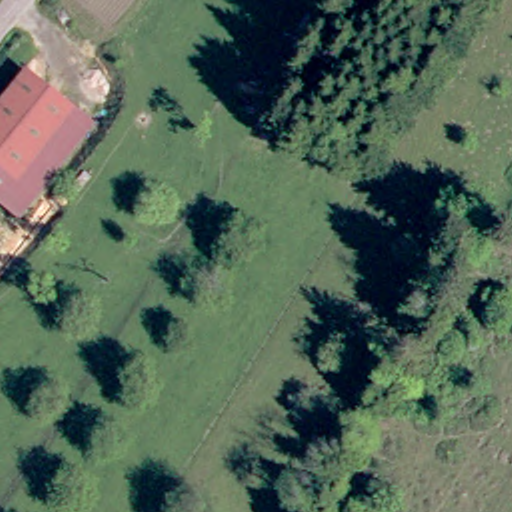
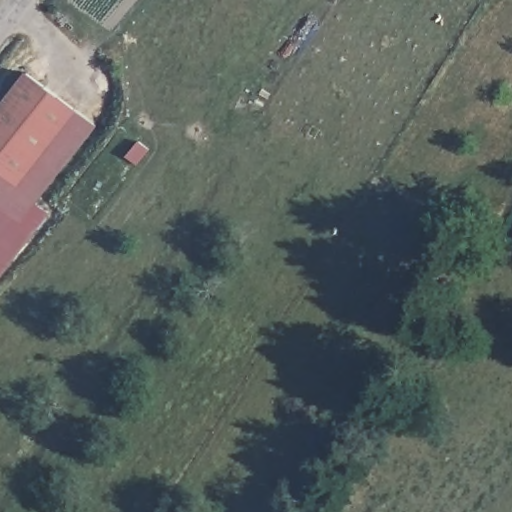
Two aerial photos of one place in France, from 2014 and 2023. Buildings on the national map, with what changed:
unchanged [(22,210),(0,193),(0,99),(30,61),(96,115),(22,210)]
new [(51,213),(0,276),(0,193),(22,210),(30,199),(51,213)]

